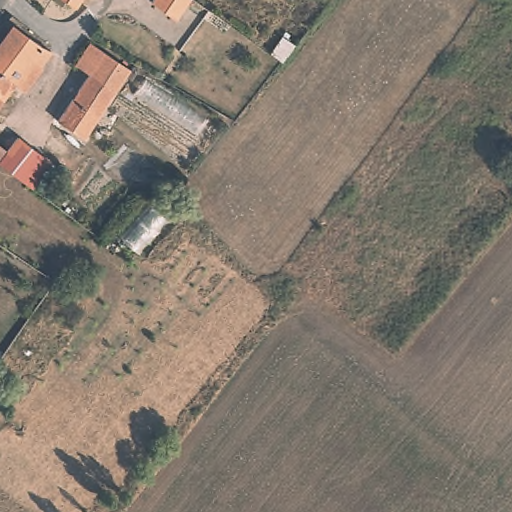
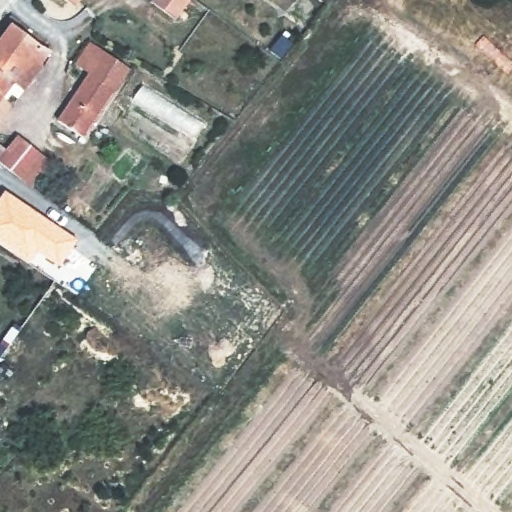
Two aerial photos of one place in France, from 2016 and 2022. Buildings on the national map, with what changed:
unchanged [(58,0),(70,0),(66,6),(58,0)]
unchanged [(189,0),(192,2),(177,24),(152,7),(157,0),(189,0)]
unchanged [(21,77),(0,104),(0,46),(13,30),(51,55),(40,70),(30,83),(21,77)]
unchanged [(295,49),(282,65),(268,55),(282,38),(295,49)]
unchanged [(84,141),(56,125),(86,79),(73,69),(90,46),(98,51),(130,73),(84,141)]
unchanged [(0,163),(0,145),(10,153),(23,138),(51,160),(33,187),(0,163)]
new [(77,240),(59,267),(36,252),(29,265),(0,246),(0,195),(3,190),(77,240)]

